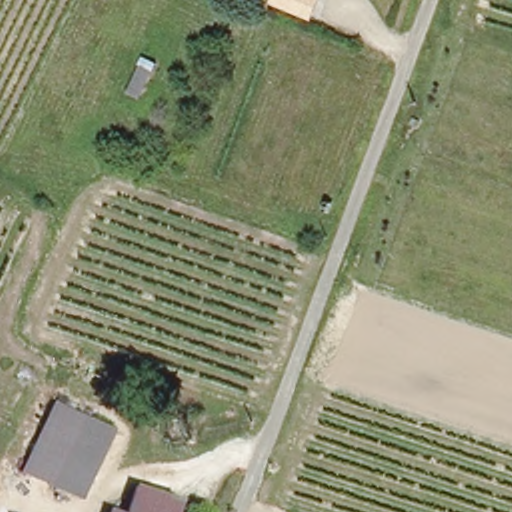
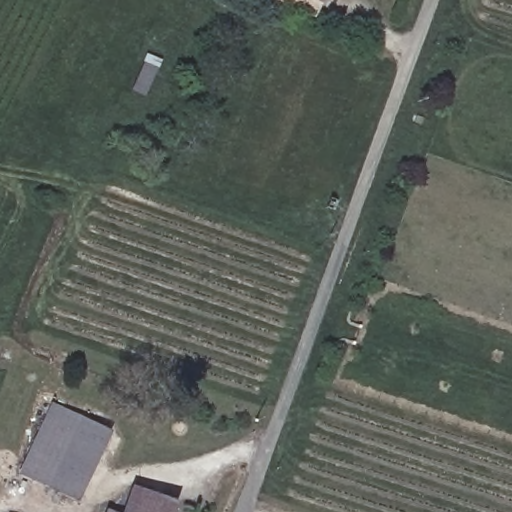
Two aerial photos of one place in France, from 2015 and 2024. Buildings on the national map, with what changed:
unchanged [(76,496),(21,470),(52,401),(79,414),(107,428),(87,472),(76,496)]
unchanged [(171,512),(124,512),(132,488),(175,502),(171,512)]

